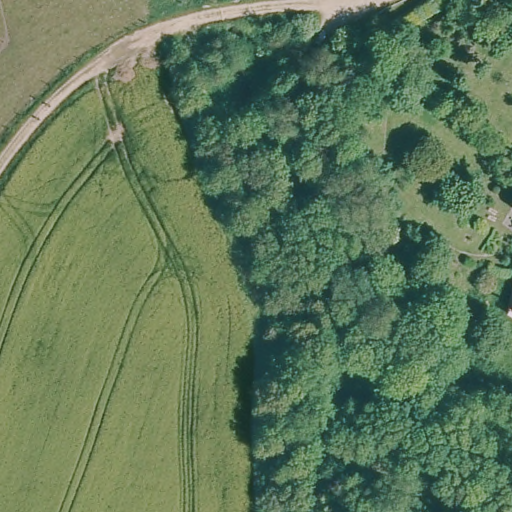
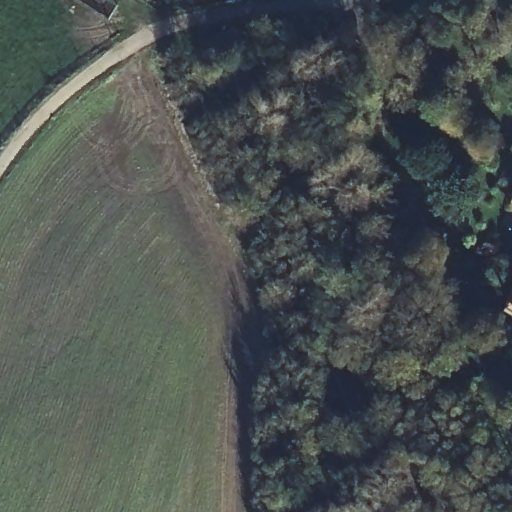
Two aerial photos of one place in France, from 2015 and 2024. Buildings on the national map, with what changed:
unchanged [(512,192),(512,202),(508,199),(512,192)]
unchanged [(512,276),(512,307),(503,301),(512,276)]

